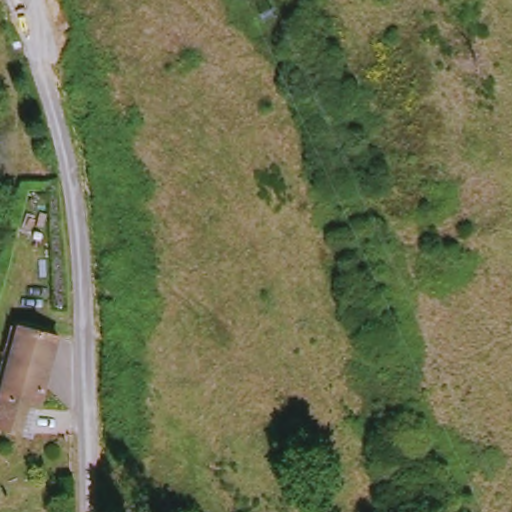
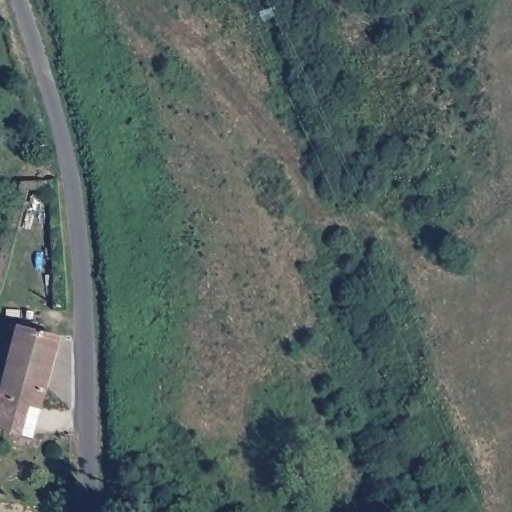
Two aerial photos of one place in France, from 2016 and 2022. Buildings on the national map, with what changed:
unchanged [(58,344),(37,411),(0,400),(0,367),(12,332),(58,344)]
unchanged [(29,437),(0,427),(0,400),(37,411),(29,437)]

